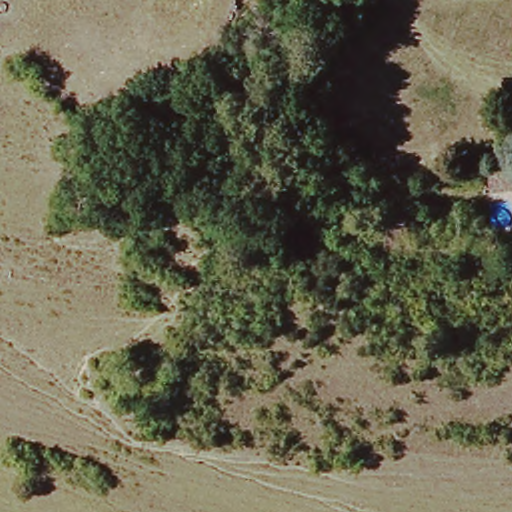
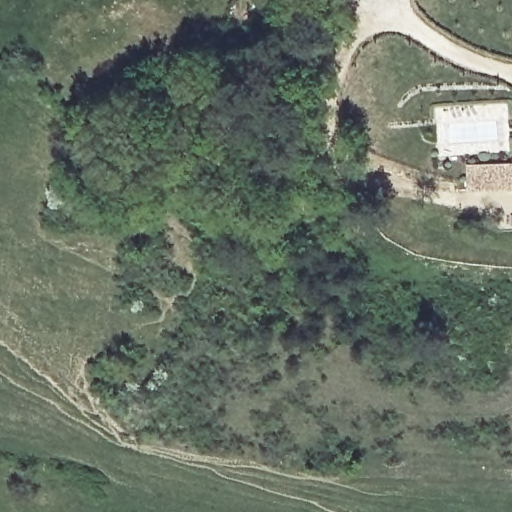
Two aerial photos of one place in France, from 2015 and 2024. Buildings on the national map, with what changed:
new [(468,192),(466,165),(512,163),(512,190),(468,192)]

